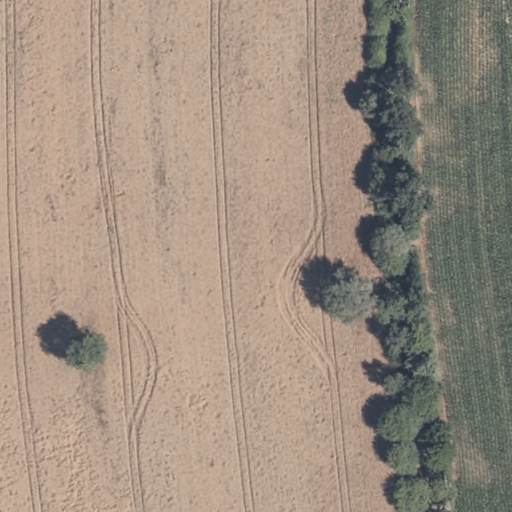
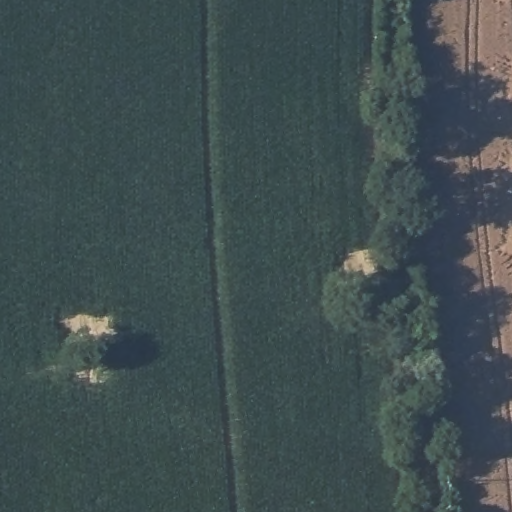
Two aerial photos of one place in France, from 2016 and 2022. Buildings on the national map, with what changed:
[]

